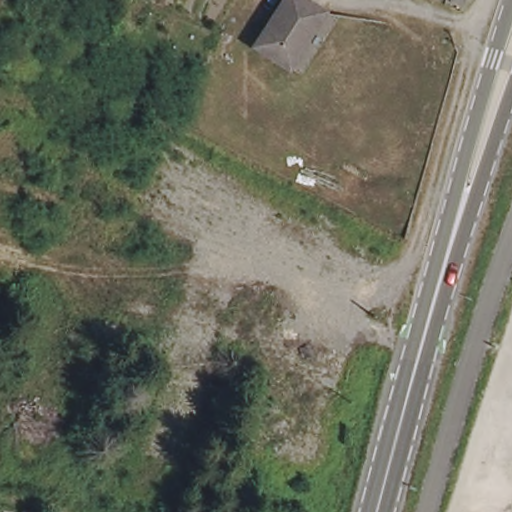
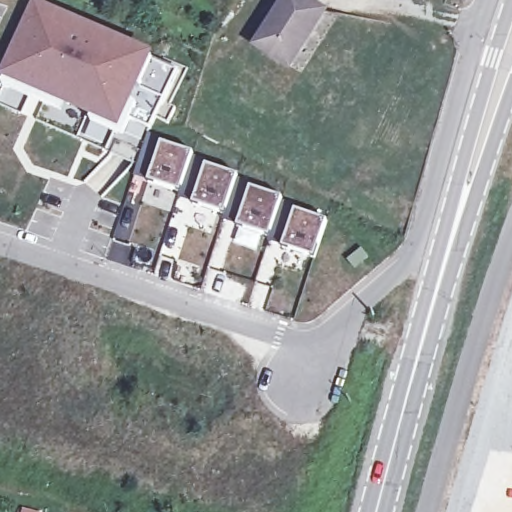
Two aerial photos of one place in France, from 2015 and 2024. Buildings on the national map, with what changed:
unchanged [(292,0),(301,0),(328,16),(294,71),(261,50),(292,0)]
unchanged [(451,0),(463,0),(462,5),(450,1),(451,0)]
new [(110,121),(65,100),(63,102),(27,85),(28,83),(4,71),(9,61),(5,60),(10,49),(14,50),(34,6),(141,57),(110,121)]
new [(161,141),(193,153),(179,194),(147,182),(161,141)]
new [(206,165),(236,176),(222,216),(192,206),(206,165)]
new [(249,188),(283,198),(270,239),(236,228),(249,188)]
new [(295,210),(327,221),(315,259),(282,248),(295,210)]

